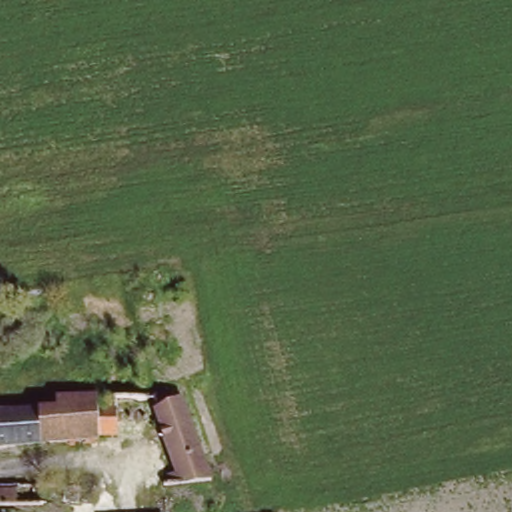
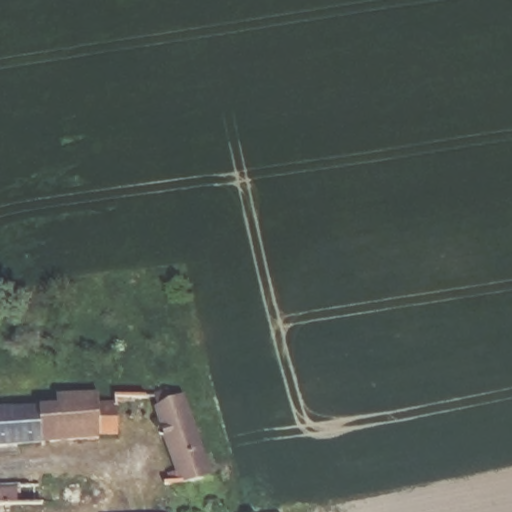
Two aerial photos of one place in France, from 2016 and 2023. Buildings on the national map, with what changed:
unchanged [(166,484),(166,473),(175,472),(154,405),(186,393),(211,478),(166,484)]
unchanged [(0,411),(62,407),(63,397),(103,395),(103,404),(122,404),(122,419),(123,435),(104,436),(105,439),(0,447),(0,411)]
unchanged [(8,487),(73,486),(73,506),(18,508),(9,503),(3,508),(0,508),(0,491),(8,491),(8,487)]

